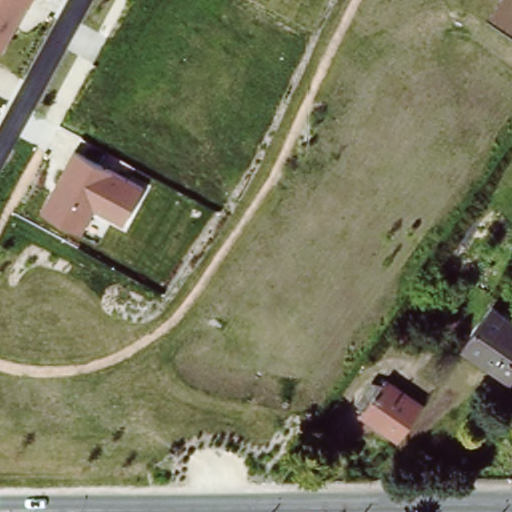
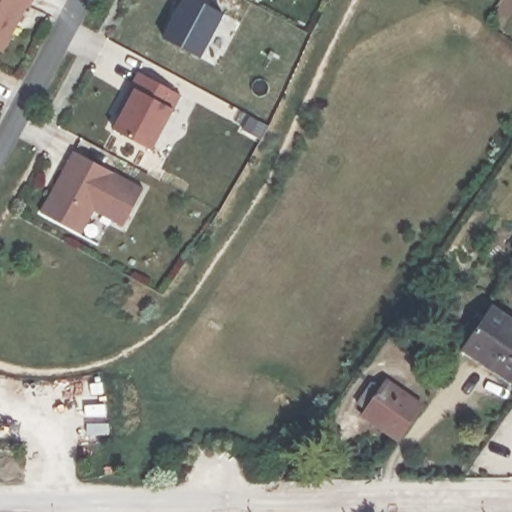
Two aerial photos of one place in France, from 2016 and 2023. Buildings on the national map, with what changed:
unchanged [(0,53),(0,0),(31,0),(2,54),(0,53)]
new [(198,0),(222,13),(198,57),(162,38),(183,0),(198,0)]
new [(115,115),(120,104),(137,73),(180,95),(150,150),(112,130),(120,117),(115,115)]
unchanged [(74,153),(144,188),(121,225),(93,212),(80,233),(41,212),(74,153)]
unchanged [(453,332),(437,318),(449,304),(455,296),(470,309),(463,317),(476,328),(470,338),(457,327),(453,332)]
unchanged [(467,344),(492,309),(512,323),(512,381),(510,383),(480,362),(462,350),(467,344)]
unchanged [(399,447),(360,421),(365,415),(357,408),(372,388),(380,394),(387,385),(424,411),(399,447)]

